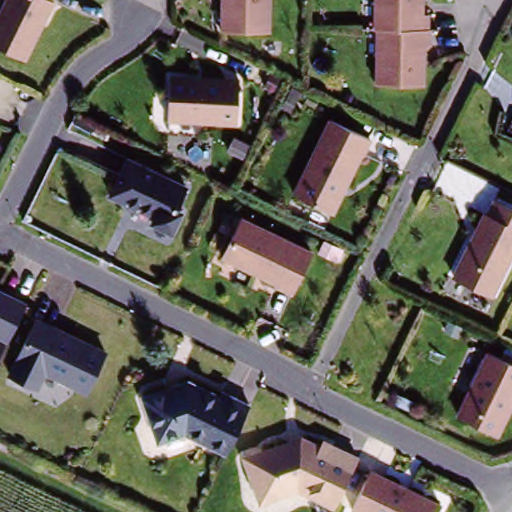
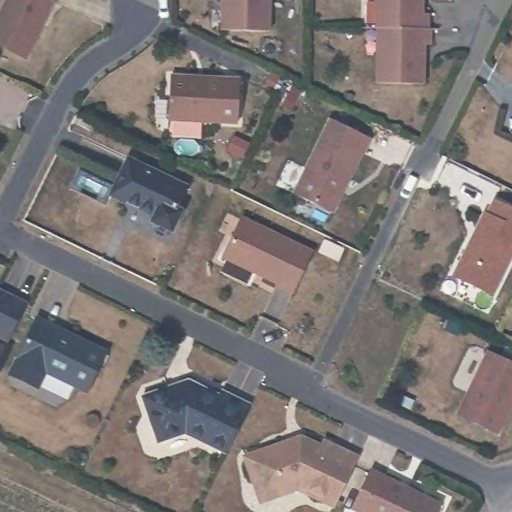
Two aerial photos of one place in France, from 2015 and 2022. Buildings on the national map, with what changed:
unchanged [(0,44),(0,16),(8,0),(50,0),(25,57),(0,44)]
unchanged [(225,26),(225,0),(272,0),(271,28),(225,26)]
unchanged [(379,83),(381,0),(428,0),(428,82),(379,83)]
unchanged [(239,124),(175,123),(175,79),(241,80),(239,124)]
unchanged [(337,214),(295,194),(329,119),(371,141),(337,214)]
unchanged [(175,225),(114,195),(131,164),(189,192),(175,225)]
unchanged [(461,275),(495,202),(512,209),(512,256),(495,293),(461,275)]
unchanged [(294,292),(227,259),(247,219),(313,253),(294,292)]
unchanged [(8,342),(0,338),(0,293),(26,305),(8,342)]
unchanged [(90,393),(47,372),(39,388),(10,376),(36,320),(106,354),(90,393)]
unchanged [(458,414),(488,354),(512,368),(512,399),(498,432),(458,414)]
unchanged [(235,451),(190,429),(164,438),(145,397),(183,382),(253,414),(235,451)]
unchanged [(337,504),(300,487),(261,500),(246,458),(300,438),(320,446),(323,439),(360,459),(337,504)]
unchanged [(441,512),(357,512),(373,477),(441,511),(441,512)]

